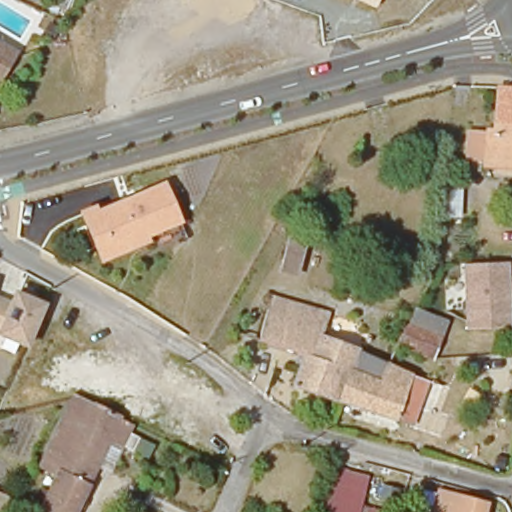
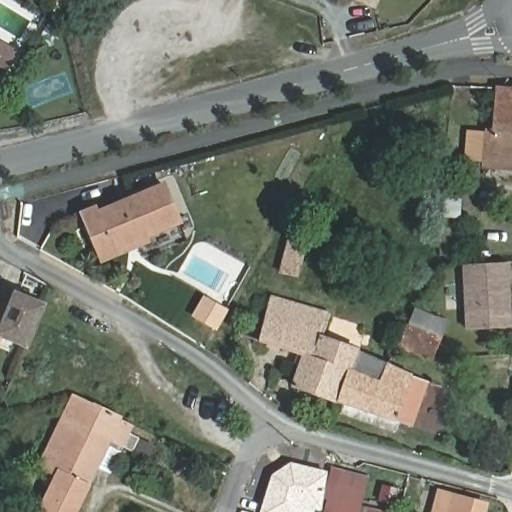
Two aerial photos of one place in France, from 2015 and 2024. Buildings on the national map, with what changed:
unchanged [(42,0),(49,0),(48,3),(42,0)]
unchanged [(358,0),(379,0),(376,8),(358,0)]
unchanged [(12,59),(0,78),(0,52),(12,59)]
unchanged [(488,131),(495,132),(499,89),(512,90),(512,169),(485,166),(485,161),(465,159),(467,130),(488,131)]
unchanged [(84,218),(95,214),(163,184),(179,222),(111,250),(100,255),(84,218)]
unchanged [(282,232),(304,232),(304,275),(282,275),(282,232)]
unchanged [(509,263),(511,328),(468,329),(466,264),(509,263)]
unchanged [(10,302),(14,292),(46,305),(27,346),(0,335),(0,298),(10,302)]
unchanged [(304,356),(259,341),(271,297),(330,314),(322,338),(360,351),(359,353),(354,369),(349,367),(346,376),(337,401),(293,386),(304,356)]
unchanged [(416,330),(422,315),(430,318),(445,323),(453,327),(438,366),(402,352),(412,329),(416,330)]
unchanged [(359,353),(388,365),(442,389),(426,431),(397,420),(396,421),(337,401),(346,376),(349,367),(354,369),(359,353)]
unchanged [(133,426),(129,434),(153,446),(148,458),(123,447),(111,441),(76,512),(40,512),(57,478),(39,469),(75,395),(121,417),(120,419),(133,426)]
new [(273,473),(290,463),(335,474),(325,512),(303,506),(301,512),(260,512),(273,473)]
unchanged [(367,478),(359,512),(324,512),(336,470),(367,478)]
unchanged [(440,492),(452,496),(486,504),(483,512),(434,512),(440,492)]
unchanged [(6,499),(0,511),(0,496),(6,499)]

